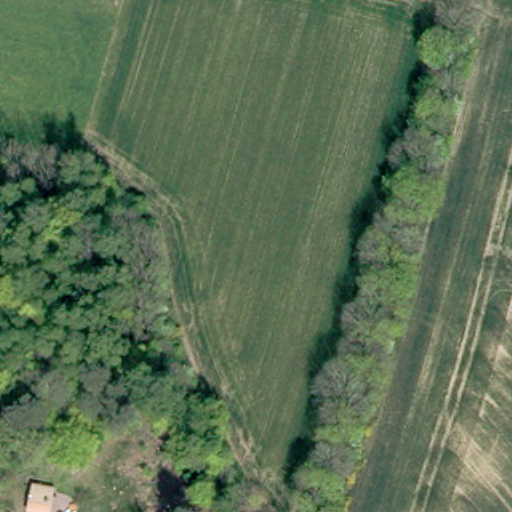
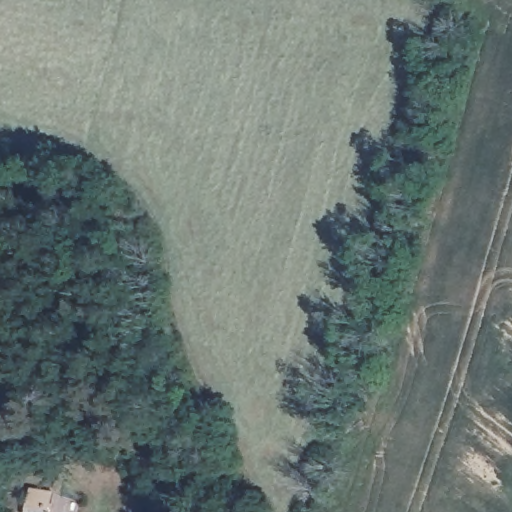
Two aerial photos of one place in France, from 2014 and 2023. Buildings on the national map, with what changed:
unchanged [(33,510),(40,491),(46,478),(69,487),(63,500),(59,512),(38,512),(33,510)]

